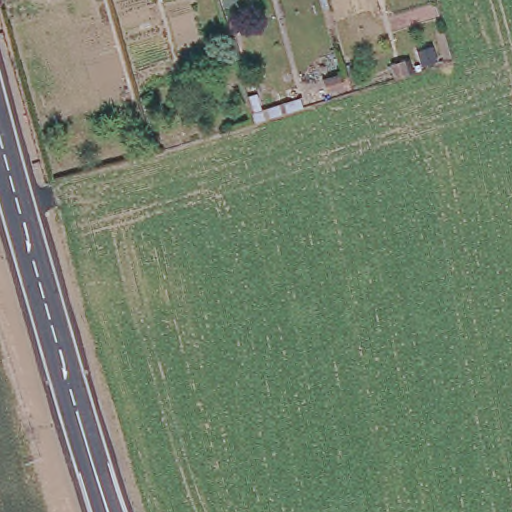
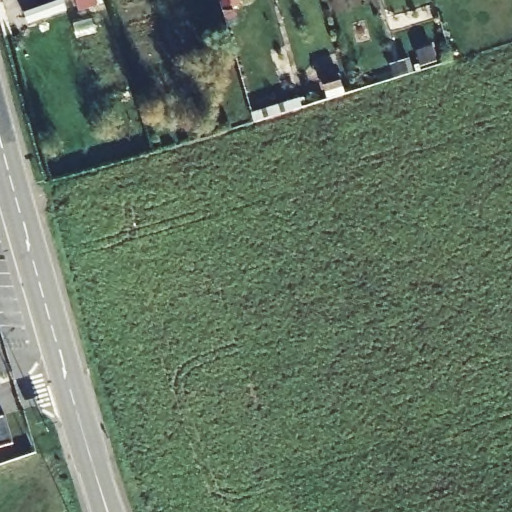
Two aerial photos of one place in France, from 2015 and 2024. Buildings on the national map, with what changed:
unchanged [(397,50),(402,65),(387,70),(382,55),(397,50)]
unchanged [(330,67),(335,82),(319,87),(314,73),(330,67)]
new [(7,415),(15,444),(0,448),(0,417),(7,415)]

